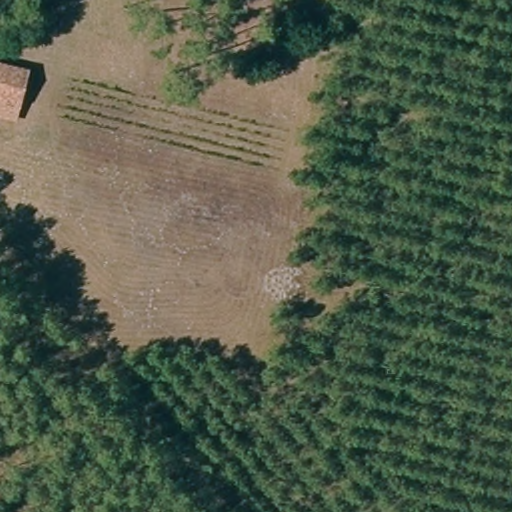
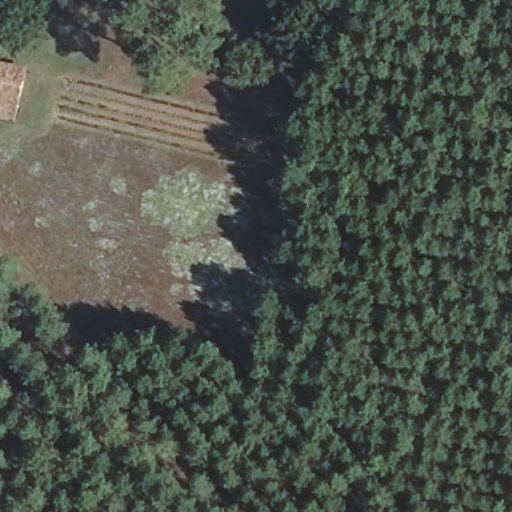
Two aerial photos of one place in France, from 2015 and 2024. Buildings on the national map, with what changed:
unchanged [(13,121),(0,119),(0,67),(24,73),(13,121)]

